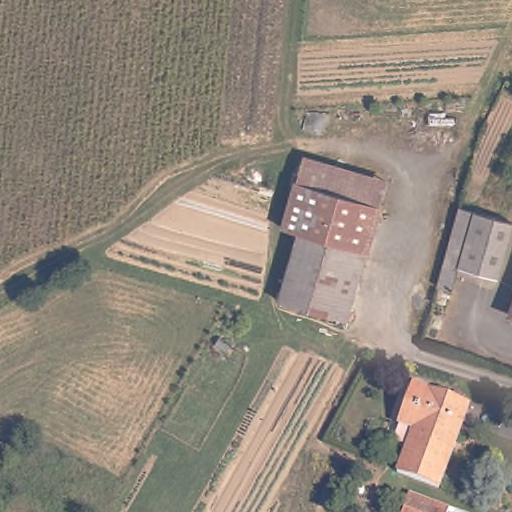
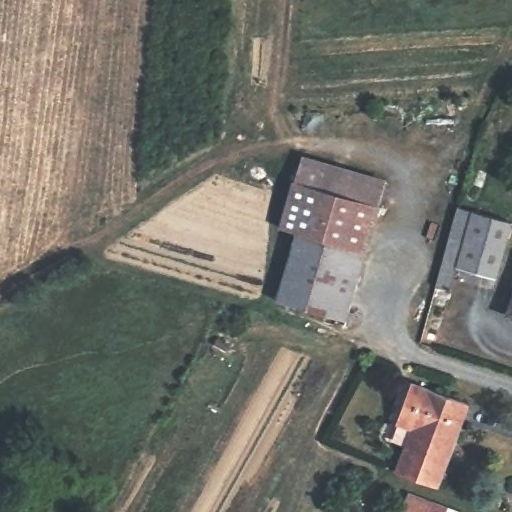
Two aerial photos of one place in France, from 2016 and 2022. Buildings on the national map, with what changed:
unchanged [(306,156),(389,180),(382,202),(299,178),(306,156)]
unchanged [(298,238),(301,228),(286,224),(299,178),(382,202),(366,257),(298,238)]
unchanged [(461,204),(512,220),(512,225),(497,275),(460,263),(451,287),(436,283),(461,204)]
unchanged [(349,317),(281,297),(298,238),(366,257),(349,317)]
unchanged [(512,311),(512,316),(511,315),(512,311)]
unchanged [(400,418),(414,380),(472,400),(442,484),(417,475),(401,468),(416,425),(400,418)]
unchanged [(467,512),(402,512),(411,492),(467,512)]

